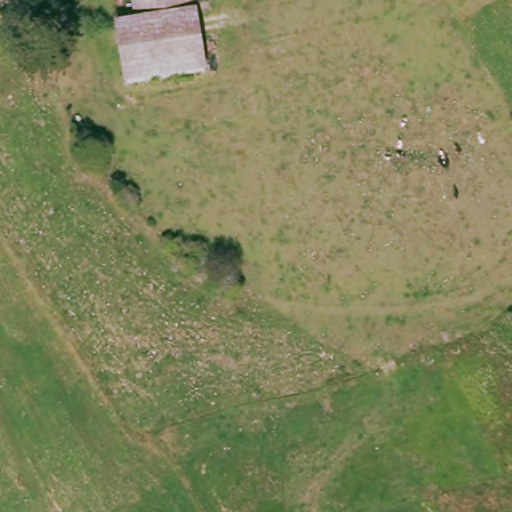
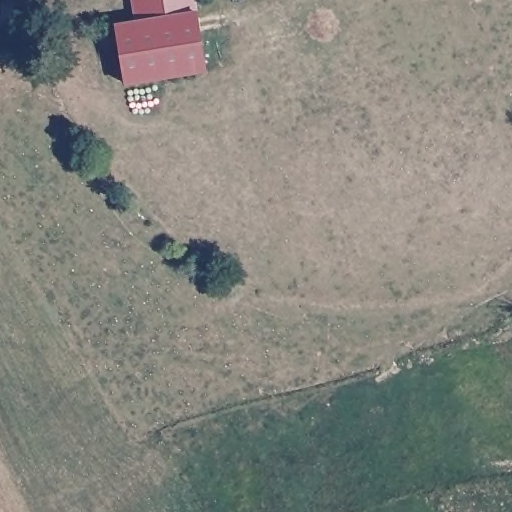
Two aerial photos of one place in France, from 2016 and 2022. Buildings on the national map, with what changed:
unchanged [(178,0),(189,0),(204,65),(127,83),(114,27),(137,18),(178,0)]
unchanged [(132,0),(178,0),(137,18),(132,0)]

